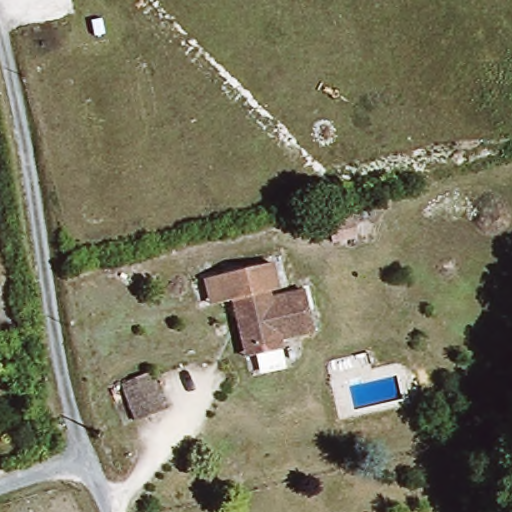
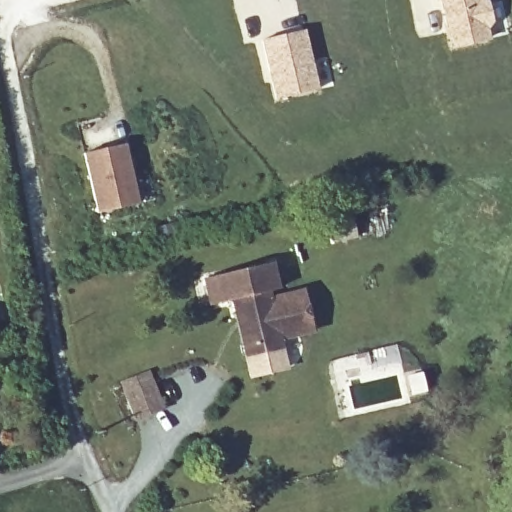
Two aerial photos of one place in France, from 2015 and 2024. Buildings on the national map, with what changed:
new [(495,22),(488,27),(491,40),(450,51),(437,0),(489,0),(495,22)]
new [(305,28),(319,88),(275,100),(260,39),(305,28)]
new [(140,202),(97,213),(82,154),(125,144),(140,202)]
unchanged [(240,343),(229,300),(218,303),(207,306),(200,281),(211,278),(268,264),(274,289),(265,291),(266,299),(302,290),(313,332),(282,341),(284,349),(255,357),(244,360),(240,343)]
unchanged [(125,419),(111,380),(145,369),(157,408),(125,419)]

